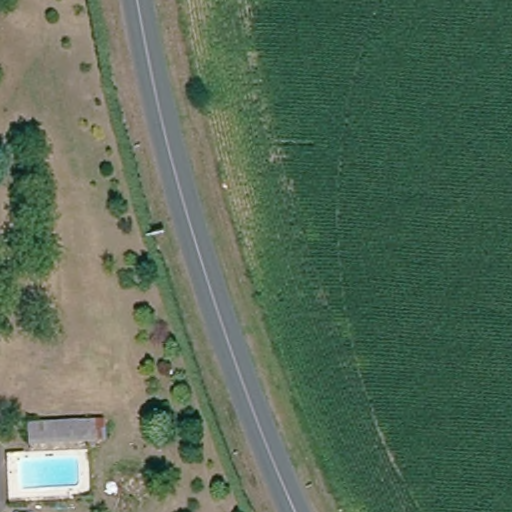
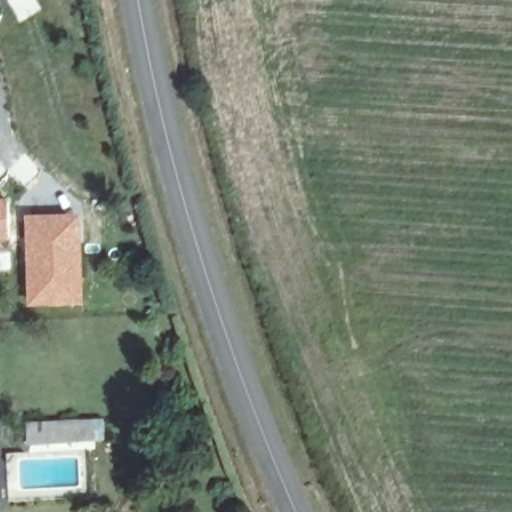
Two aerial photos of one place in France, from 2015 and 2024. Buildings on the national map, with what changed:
new [(9,240),(0,240),(0,198),(7,198),(9,240)]
new [(80,213),(84,305),(26,307),(25,215),(80,213)]
new [(104,442),(28,445),(26,421),(103,418),(104,442)]

